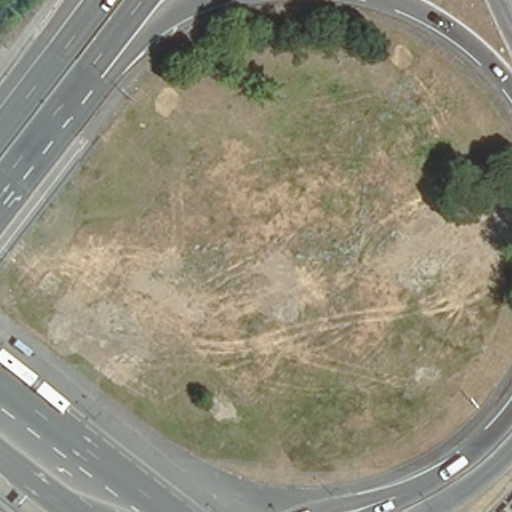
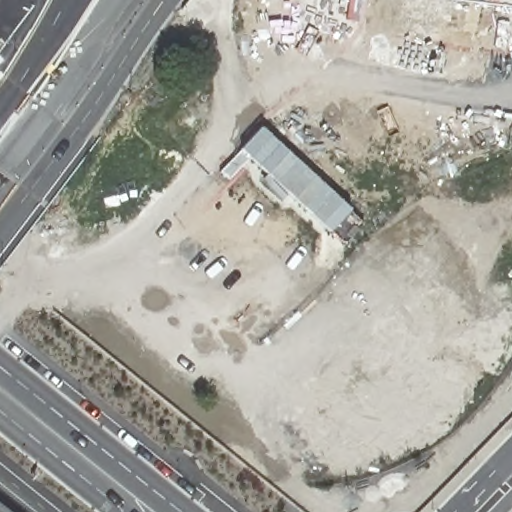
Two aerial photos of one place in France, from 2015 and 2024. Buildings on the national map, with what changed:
new [(332,232),(250,158),(228,180),(219,171),(261,127),(350,210),(332,232)]

